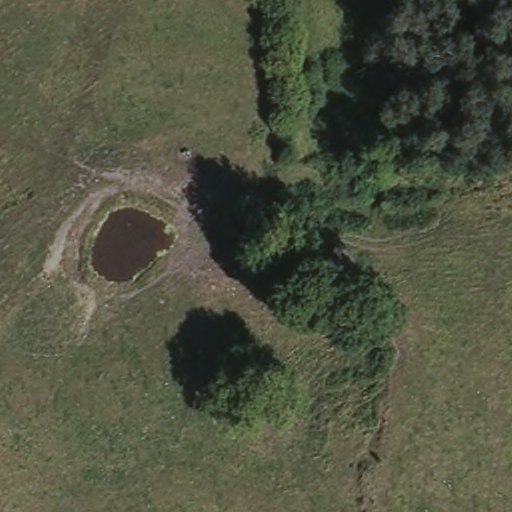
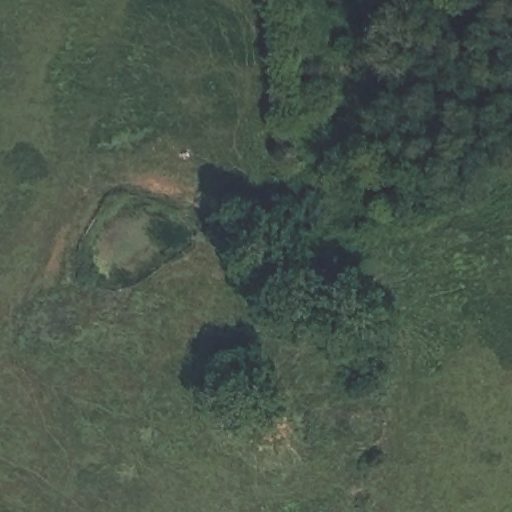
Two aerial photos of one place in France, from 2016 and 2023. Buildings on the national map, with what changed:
[]

